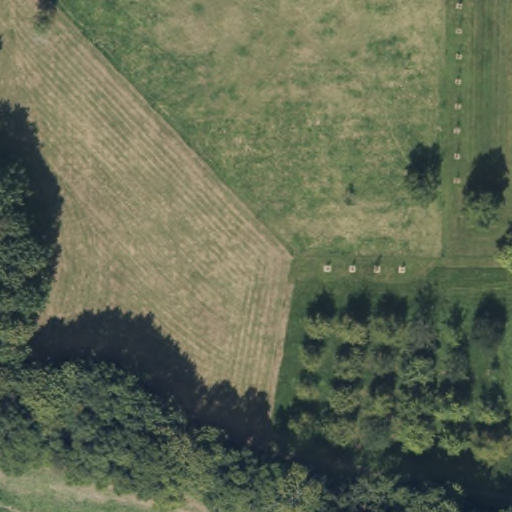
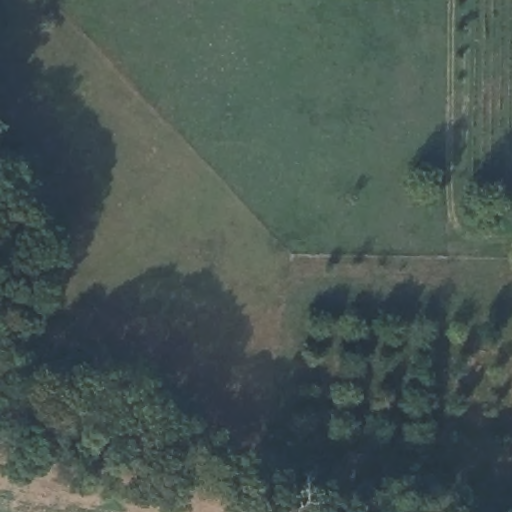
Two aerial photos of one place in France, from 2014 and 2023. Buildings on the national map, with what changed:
[]

